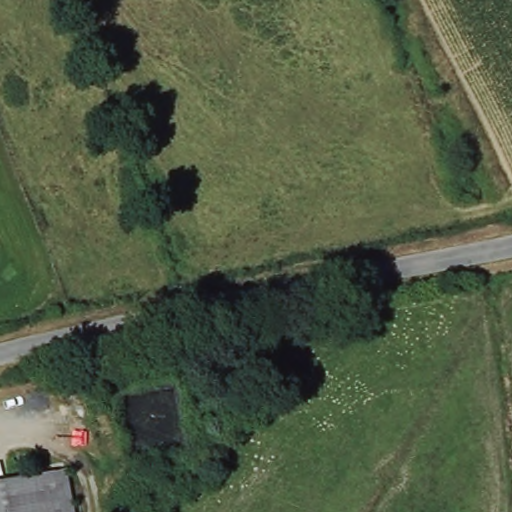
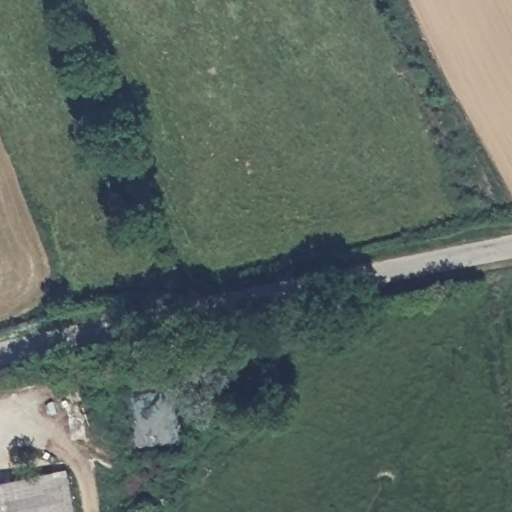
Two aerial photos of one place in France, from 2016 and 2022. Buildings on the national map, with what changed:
unchanged [(0,512),(0,483),(69,470),(77,512),(0,512)]

